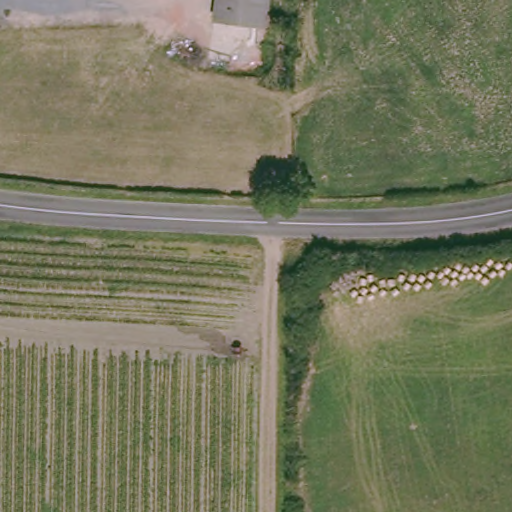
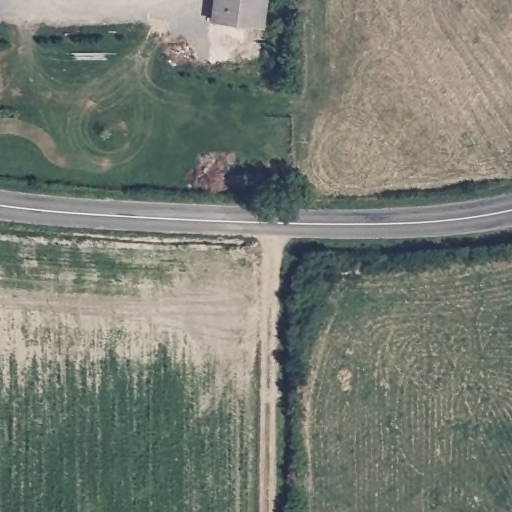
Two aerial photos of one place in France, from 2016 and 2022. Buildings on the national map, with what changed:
unchanged [(215,10),(216,0),(266,0),(264,16),(215,10)]

